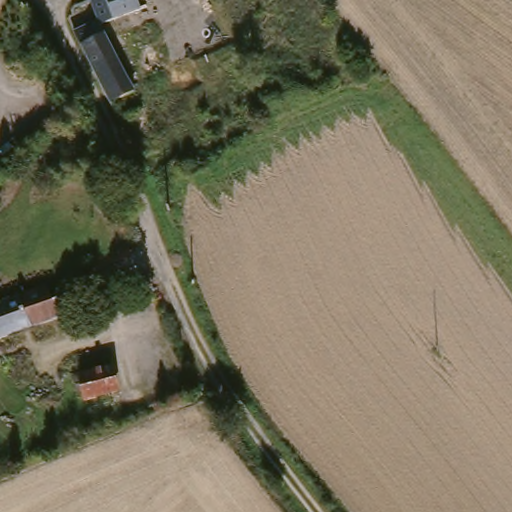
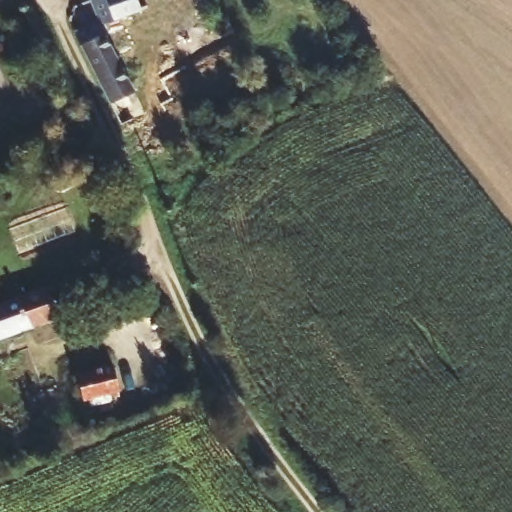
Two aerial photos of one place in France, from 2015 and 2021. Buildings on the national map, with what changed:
unchanged [(75,35),(99,21),(89,5),(99,0),(137,0),(140,9),(104,28),(145,109),(132,115),(134,120),(122,127),(75,35)]
unchanged [(58,313),(0,339),(0,299),(44,280),(58,313)]
unchanged [(79,377),(114,369),(119,393),(84,401),(79,377)]

